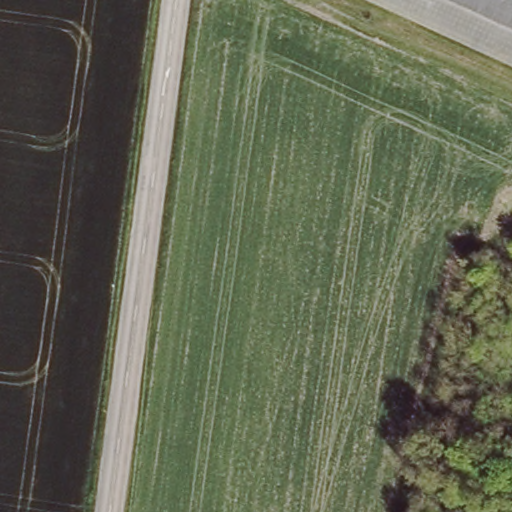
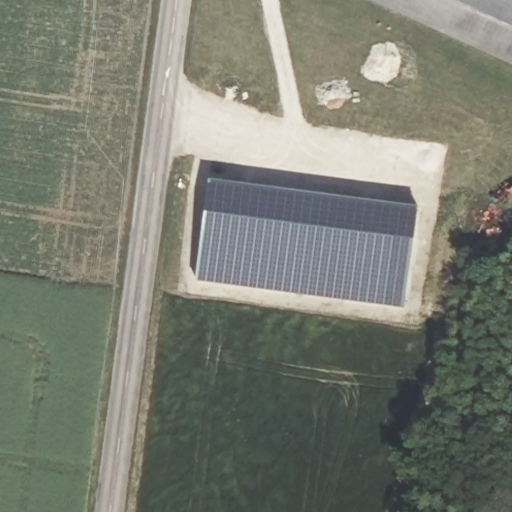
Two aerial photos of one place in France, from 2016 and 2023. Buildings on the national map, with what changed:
unchanged [(386,0),(512,0),(512,58),(386,0)]
new [(210,177),(417,204),(405,307),(195,278),(210,177)]

